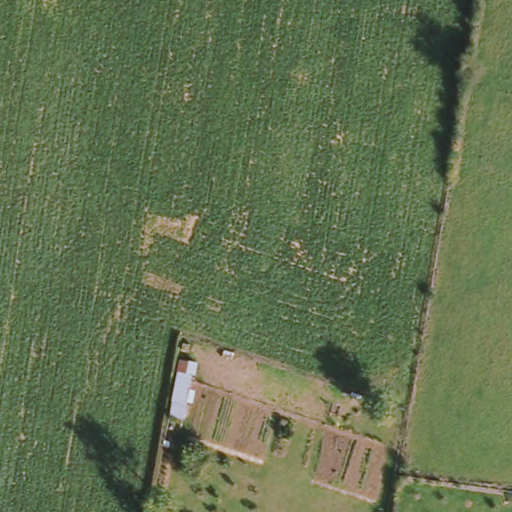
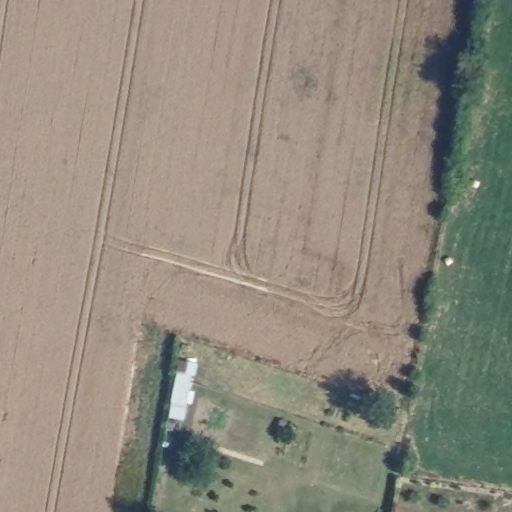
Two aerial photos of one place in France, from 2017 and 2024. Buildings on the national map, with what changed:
unchanged [(161,421),(165,401),(170,375),(182,376),(177,403),(173,423),(161,421)]

